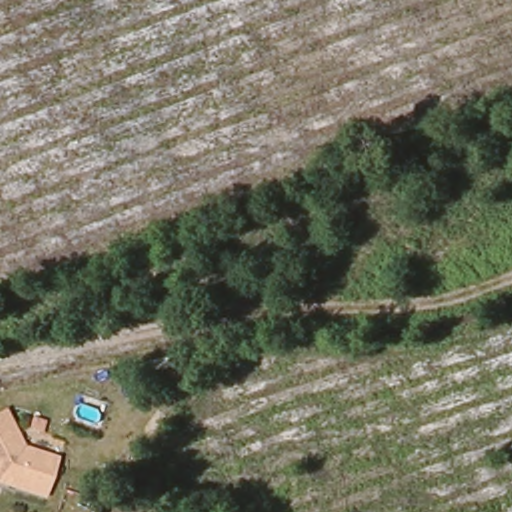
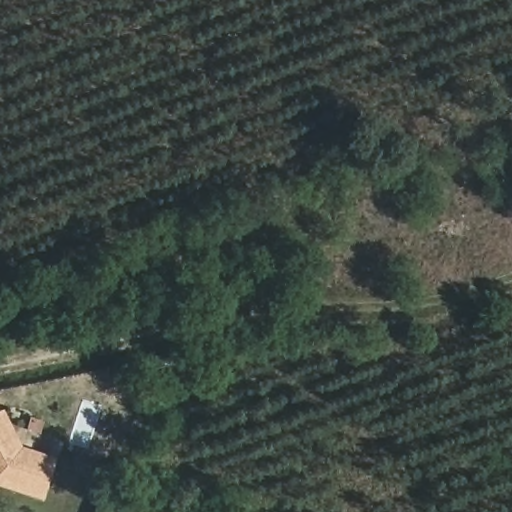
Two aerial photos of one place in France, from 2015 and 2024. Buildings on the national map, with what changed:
unchanged [(25,447),(61,456),(48,499),(0,485),(0,411),(5,408),(25,447)]

